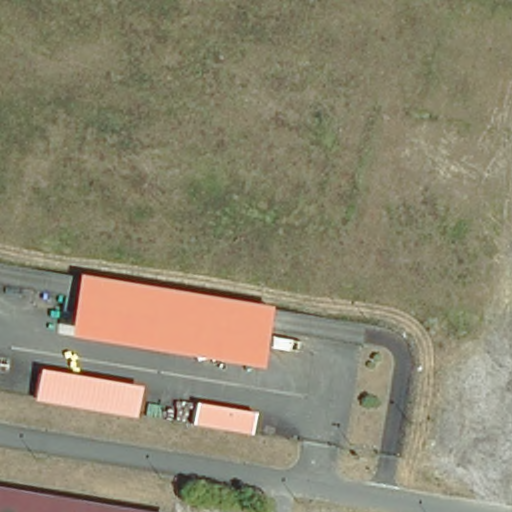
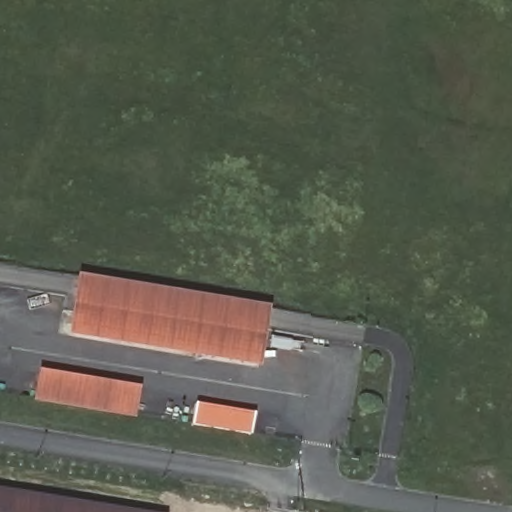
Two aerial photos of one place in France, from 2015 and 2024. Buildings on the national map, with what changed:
unchanged [(271,308),(261,370),(71,337),(79,277),(271,308)]
unchanged [(143,388),(136,419),(35,401),(41,371),(143,388)]
unchanged [(257,413),(252,436),(193,426),(197,402),(257,413)]
unchanged [(0,512),(0,490),(133,512),(0,512)]

